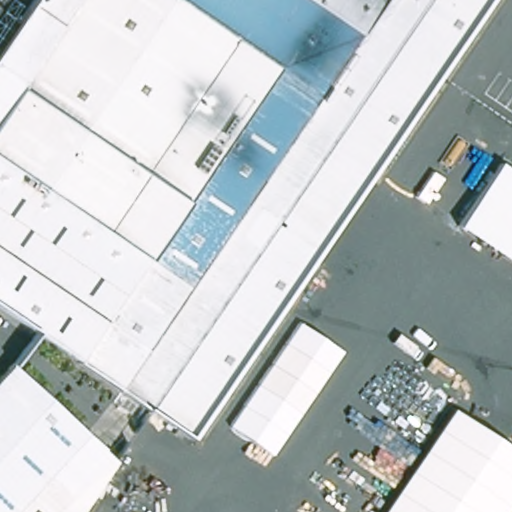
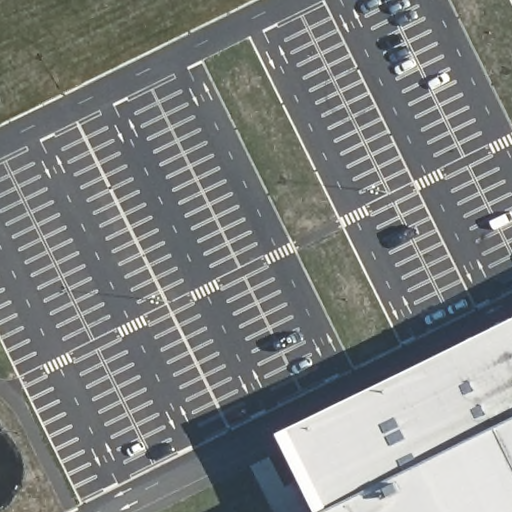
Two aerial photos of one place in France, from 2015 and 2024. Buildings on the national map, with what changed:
demolished [(164,423),(132,401),(125,396),(0,310),(0,17),(12,0),(455,0),(164,423)]
demolished [(455,0),(491,0),(192,438),(164,423),(455,0)]
new [(333,459),(354,441),(400,406),(417,391),(438,376),(467,359),(512,336),(512,512),(341,512),(356,505),(333,459)]
demolished [(109,453),(62,506),(68,512),(0,512),(0,375),(11,364),(109,453)]
demolished [(504,512),(383,512),(453,408),(512,448),(512,500),(504,512)]
demolished [(109,453),(118,462),(82,512),(68,512),(62,506),(109,453)]

